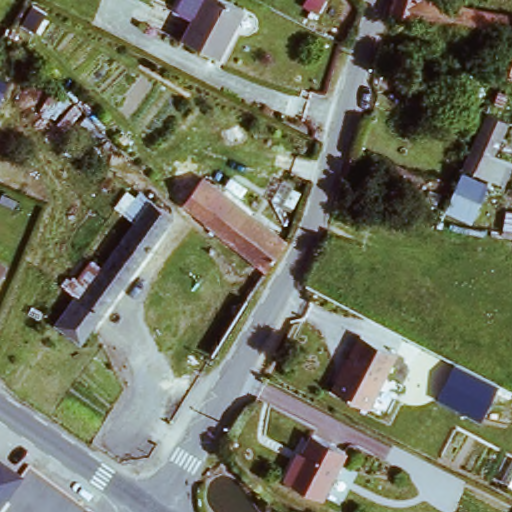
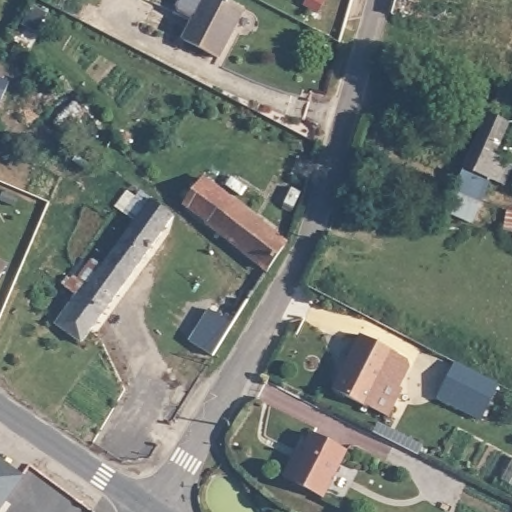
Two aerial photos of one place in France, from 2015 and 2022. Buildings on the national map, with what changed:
unchanged [(178,44),(199,0),(221,0),(237,8),(212,60),(178,44)]
unchanged [(399,0),(437,0),(455,4),(490,12),(487,19),(498,22),(493,35),(394,13),(399,0)]
unchanged [(497,67),(510,27),(502,24),(505,14),(512,15),(512,70),(497,67)]
unchanged [(0,105),(0,78),(10,83),(0,105)]
unchanged [(485,129),(501,136),(478,187),(462,180),(485,129)]
unchanged [(251,255),(192,210),(209,184),(265,228),(280,237),(275,249),(265,263),(251,255)]
unchanged [(459,191),(482,200),(476,216),(452,206),(459,191)]
unchanged [(117,241),(139,208),(166,223),(87,341),(64,325),(100,264),(87,255),(102,231),(117,241)]
unchanged [(504,227),(507,210),(512,210),(512,228),(504,227)]
new [(234,325),(212,358),(188,342),(209,310),(234,325)]
unchanged [(367,336),(401,362),(364,410),(331,385),(367,336)]
unchanged [(437,398),(456,364),(499,386),(481,420),(437,398)]
unchanged [(352,459),(323,503),(279,475),(292,454),(297,458),(310,434),(352,459)]
unchanged [(0,495),(0,441),(23,454),(0,495)]

